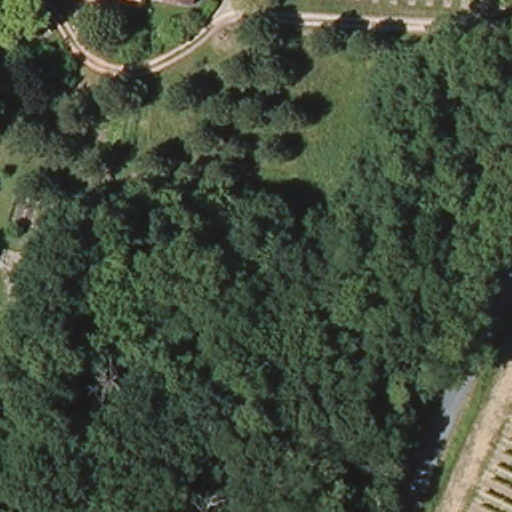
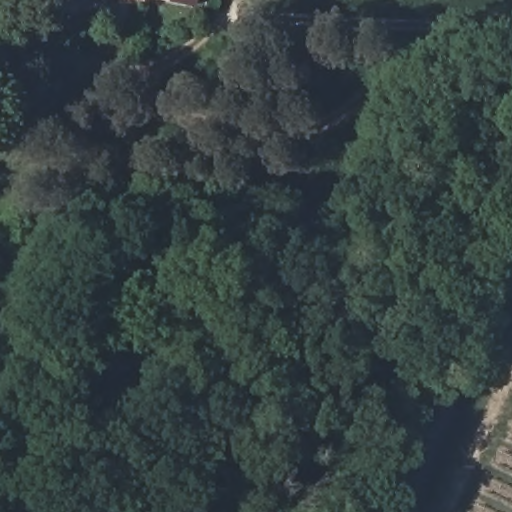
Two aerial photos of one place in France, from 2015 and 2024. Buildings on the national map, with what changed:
unchanged [(189,7),(163,0),(190,0),(189,7)]

